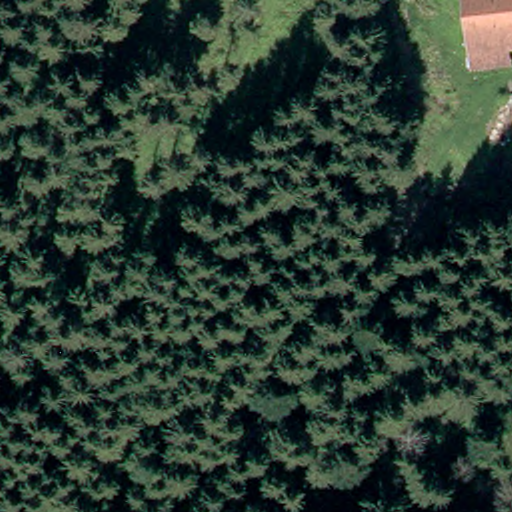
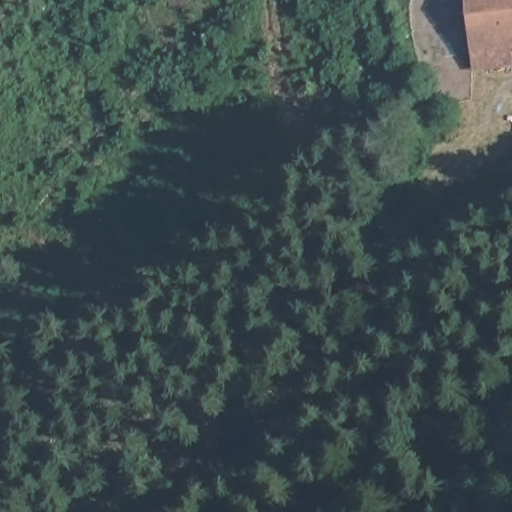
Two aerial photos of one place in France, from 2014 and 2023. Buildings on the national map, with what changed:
unchanged [(511,44),(512,60),(475,64),(469,0),(512,0),(512,44),(511,44)]

